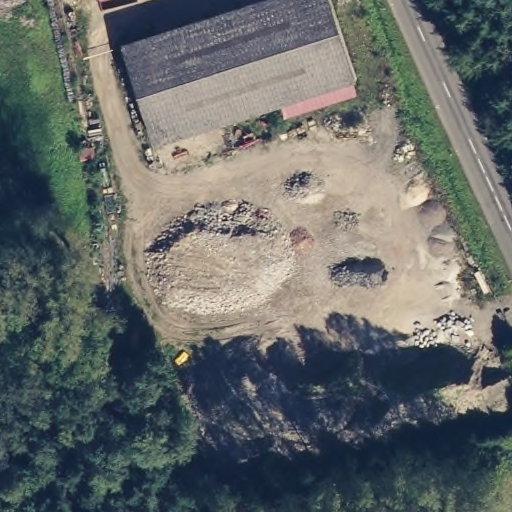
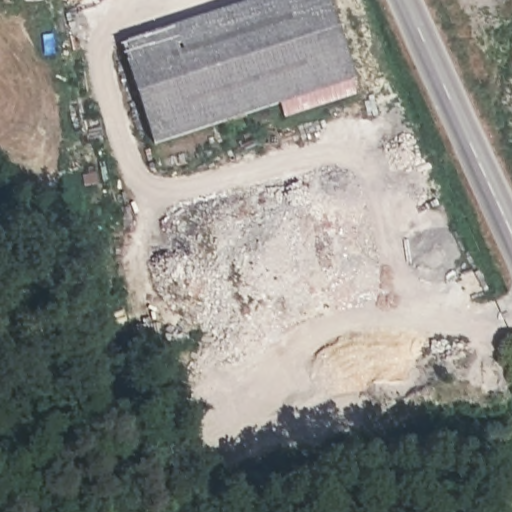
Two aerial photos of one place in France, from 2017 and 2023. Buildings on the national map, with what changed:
unchanged [(160,145),(129,43),(261,0),(335,0),(360,78),(160,145)]

